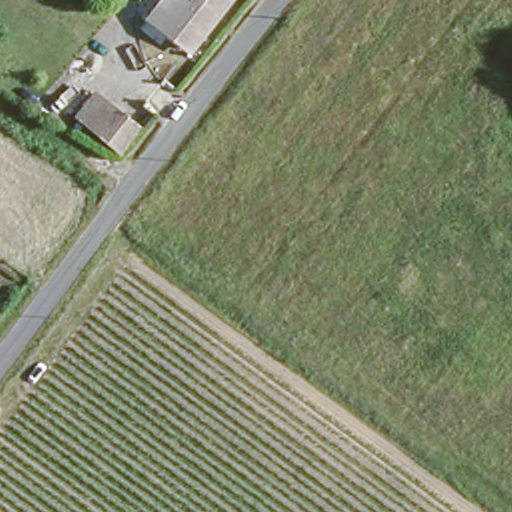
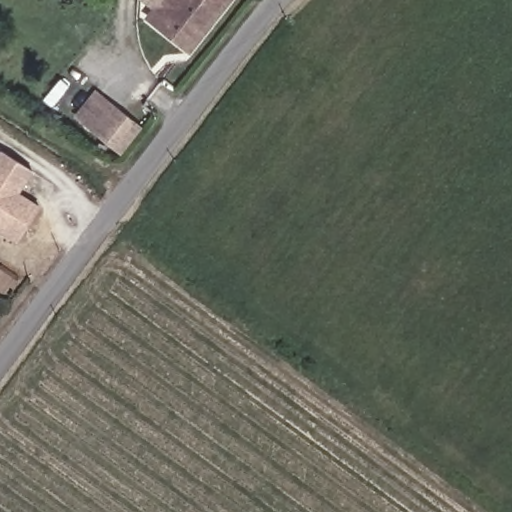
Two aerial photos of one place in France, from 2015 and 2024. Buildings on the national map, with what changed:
unchanged [(148,10),(155,0),(219,0),(187,41),(148,10)]
unchanged [(123,157),(73,117),(94,90),(143,127),(123,157)]
new [(35,169),(21,192),(43,206),(20,241),(0,228),(0,156),(4,150),(35,169)]

